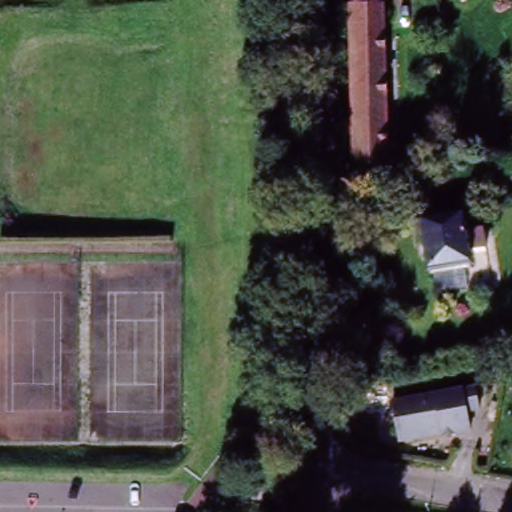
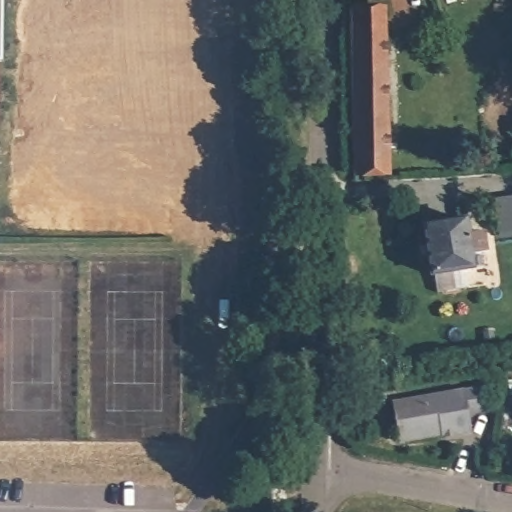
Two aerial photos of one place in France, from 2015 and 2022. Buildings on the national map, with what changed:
unchanged [(355,8),(385,6),(388,160),(359,161),(355,8)]
unchanged [(484,233),(487,252),(471,254),(473,270),(432,275),(425,226),(465,221),(468,235),(484,233)]
unchanged [(471,393),(474,410),(465,412),(467,430),(395,440),(390,405),(471,393)]

